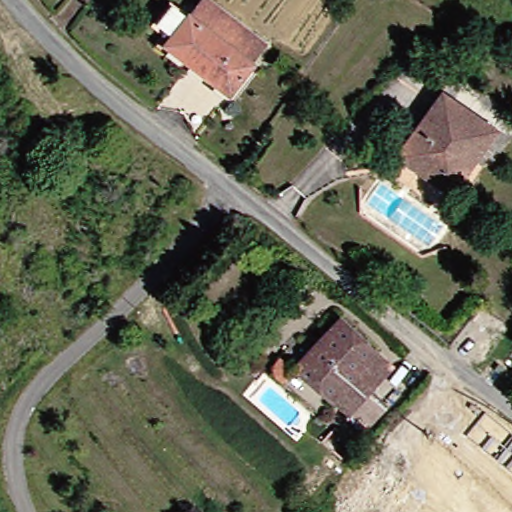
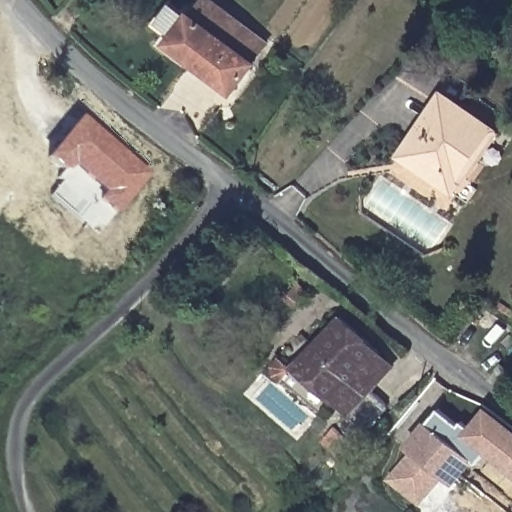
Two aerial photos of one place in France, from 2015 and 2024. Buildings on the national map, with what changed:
unchanged [(199,0),(215,0),(222,6),(269,44),(226,95),(163,42),(189,12),(199,0)]
unchanged [(453,194),(402,156),(448,95),(494,129),(498,132),(490,142),(453,194)]
new [(79,119),(149,176),(116,216),(97,200),(103,192),(71,167),(65,175),(46,157),(79,119)]
unchanged [(381,410),(364,427),(350,415),(353,411),(339,398),(335,401),(296,363),(345,317),(383,353),(395,366),(366,395),(381,410)]
new [(411,452),(406,446),(426,421),(428,423),(440,410),(459,425),(462,422),(469,427),(486,408),(512,430),(512,477),(486,456),(477,465),(475,463),(454,486),(443,477),(422,506),(390,478),(411,452)]
demolished [(488,412),(512,432),(512,474),(467,435),(488,412)]

